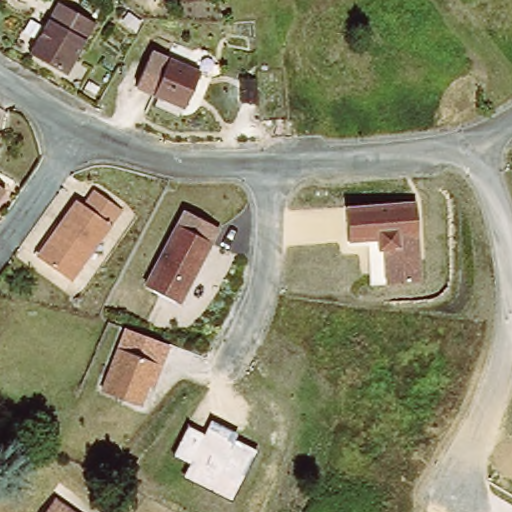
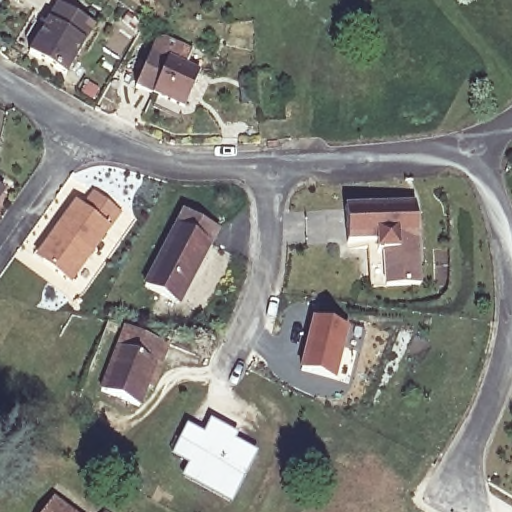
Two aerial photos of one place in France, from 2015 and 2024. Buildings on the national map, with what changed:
unchanged [(28,53),(58,3),(94,24),(65,74),(28,53)]
unchanged [(199,71),(183,108),(136,87),(151,50),(199,71)]
unchanged [(0,204),(0,185),(9,191),(0,204)]
unchanged [(59,233),(81,201),(96,213),(108,197),(125,210),(74,281),(45,259),(41,257),(59,233)]
unchanged [(373,284),(369,240),(347,242),(344,203),(415,197),(421,282),(373,284)]
unchanged [(218,228),(178,303),(144,285),(184,210),(218,228)]
new [(314,318),(347,325),(334,377),(301,369),(314,318)]
unchanged [(173,344),(160,381),(151,378),(141,406),(98,391),(121,328),(173,344)]
unchanged [(206,433),(210,420),(238,434),(236,440),(258,450),(231,504),(183,481),(189,464),(171,456),(185,424),(206,433)]
unchanged [(53,499),(72,512),(44,512),(53,499)]

